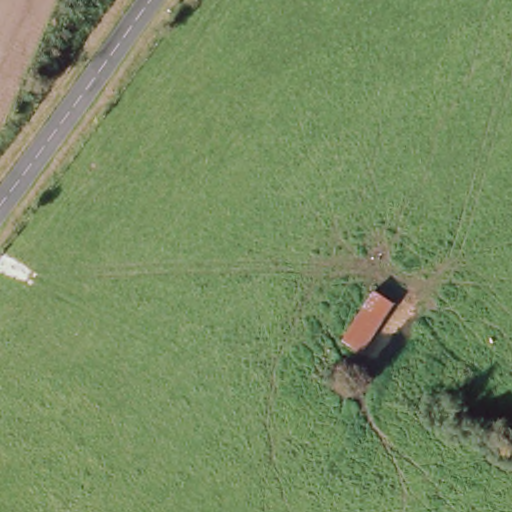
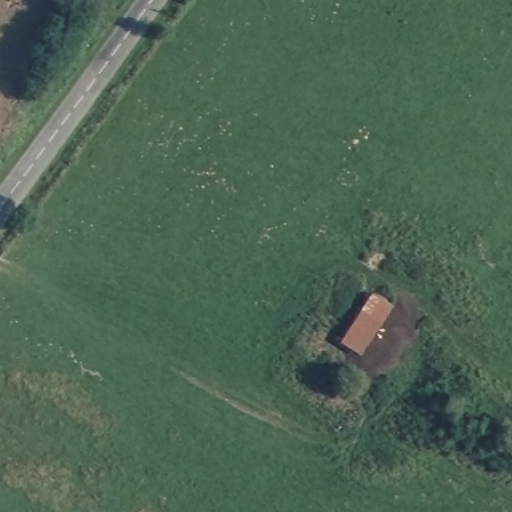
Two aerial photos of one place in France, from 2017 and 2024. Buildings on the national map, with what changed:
unchanged [(373,295),(394,308),(361,359),(341,347),(373,295)]

